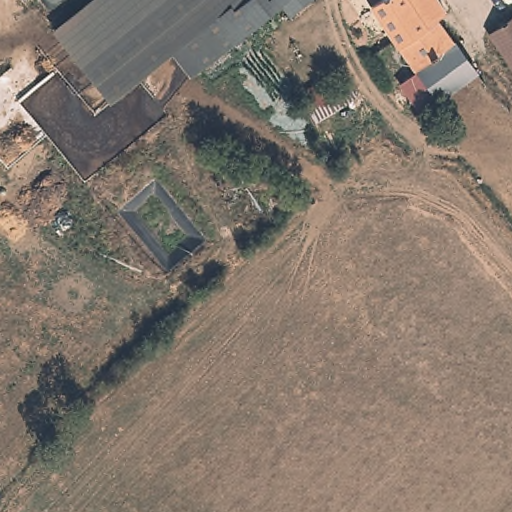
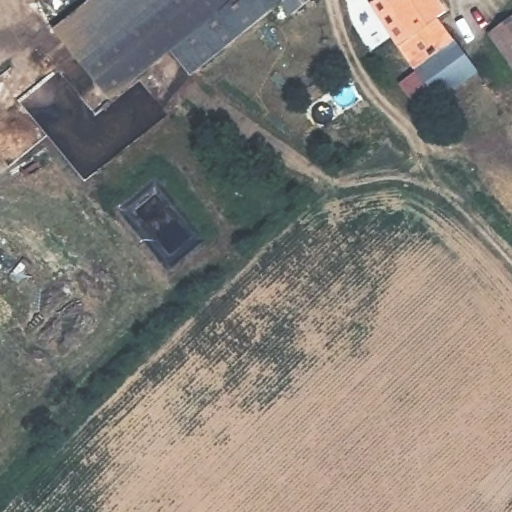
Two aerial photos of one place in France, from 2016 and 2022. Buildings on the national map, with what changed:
unchanged [(171,46),(110,95),(53,26),(85,0),(279,0),(191,70),(171,46)]
unchanged [(284,0),(304,0),(292,10),(284,0)]
unchanged [(443,100),(426,111),(407,82),(423,71),(407,50),(373,0),(443,0),(451,12),(441,19),(481,71),(491,85),(453,113),(443,100)]
unchanged [(512,57),(490,26),(512,10),(512,57)]

